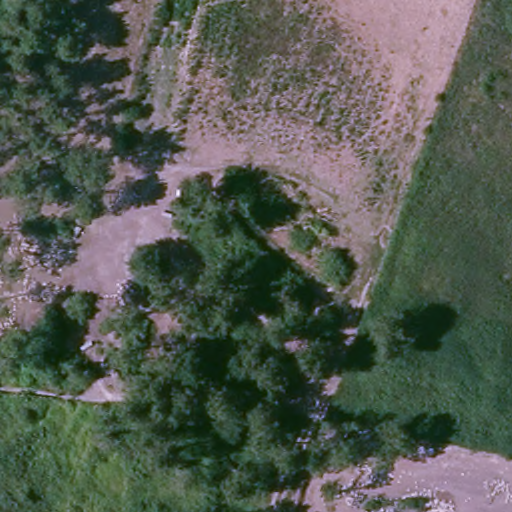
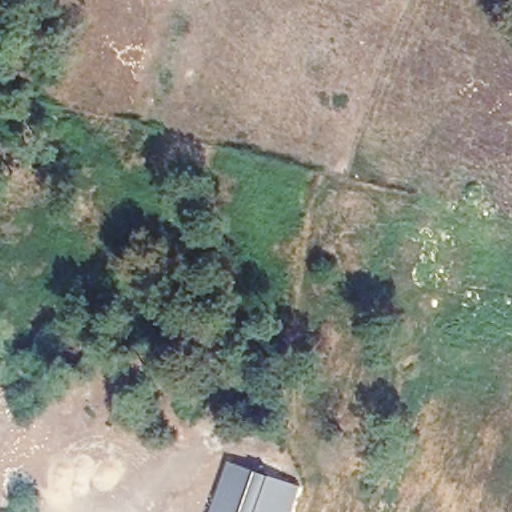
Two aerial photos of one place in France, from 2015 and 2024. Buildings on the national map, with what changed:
new [(301,485),(292,512),(210,512),(228,460),(301,485)]

